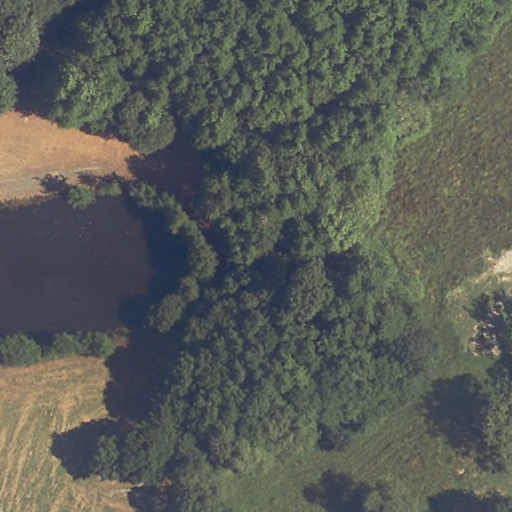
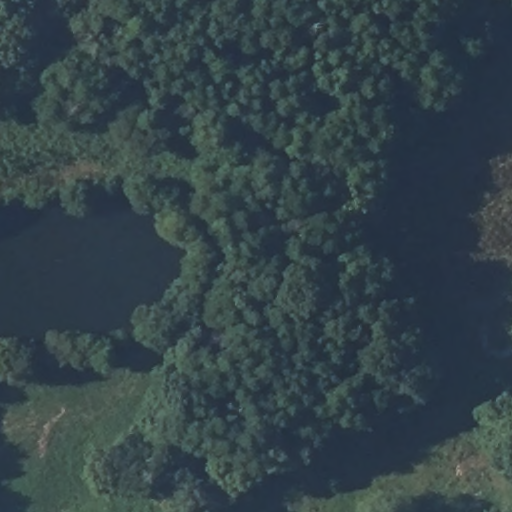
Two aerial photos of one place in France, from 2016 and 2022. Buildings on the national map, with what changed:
[]

